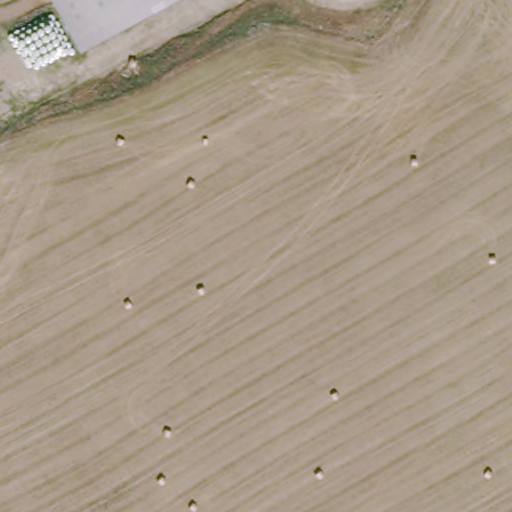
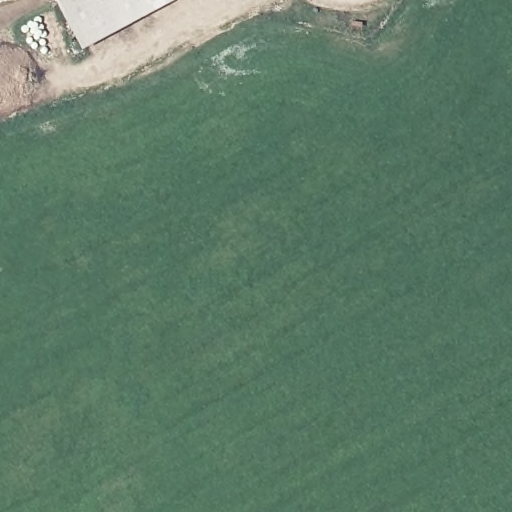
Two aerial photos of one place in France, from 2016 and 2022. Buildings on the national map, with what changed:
unchanged [(62,22),(50,0),(137,0),(70,37),(62,22)]

